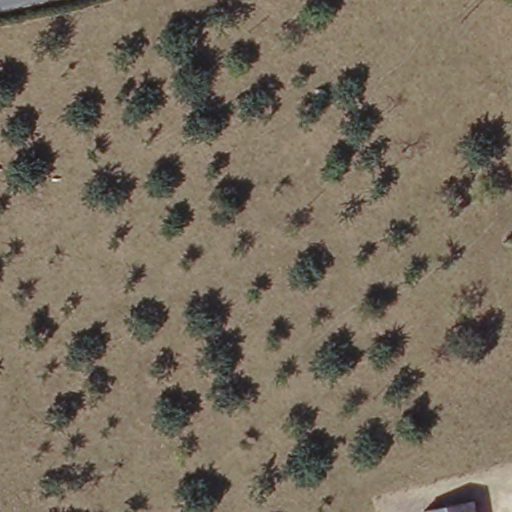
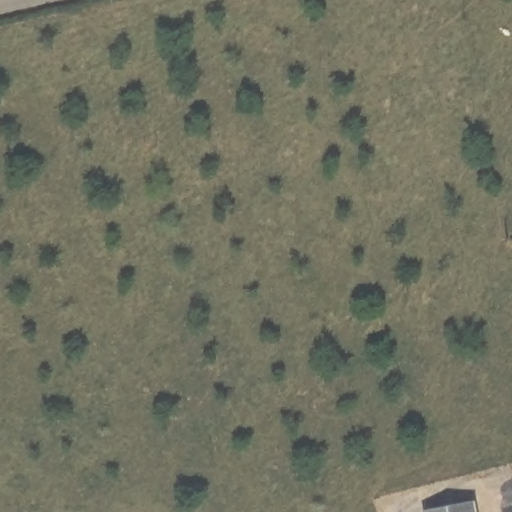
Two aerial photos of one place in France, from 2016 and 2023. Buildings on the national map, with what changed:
unchanged [(477,501),(480,512),(423,512),(423,511),(477,501)]

